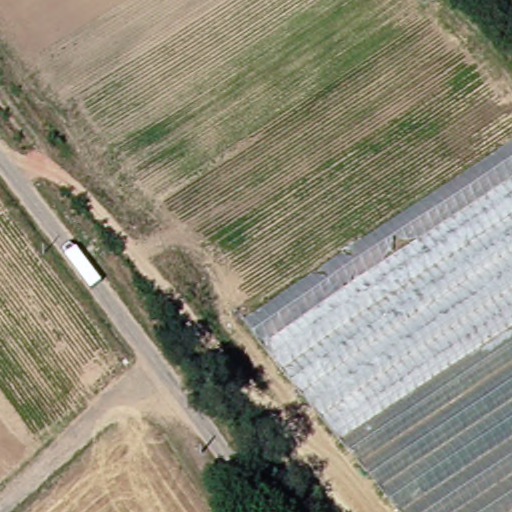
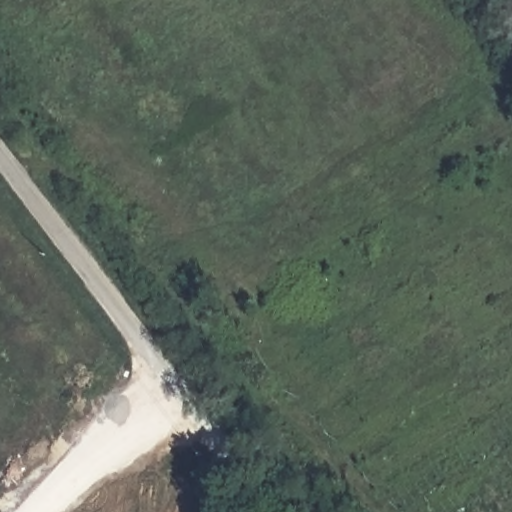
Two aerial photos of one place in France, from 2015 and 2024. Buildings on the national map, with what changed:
new [(243,319),(512,145),(512,512),(404,512),(243,319)]

